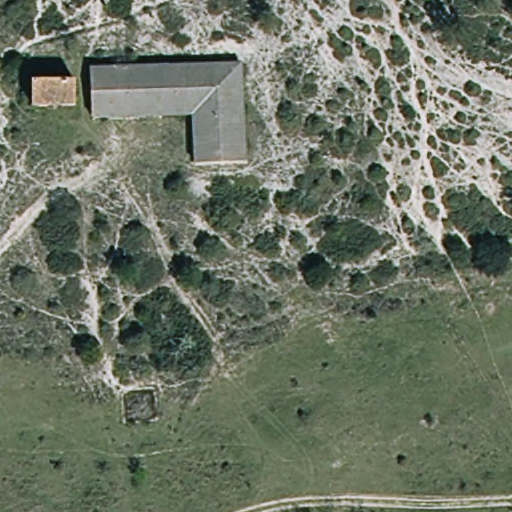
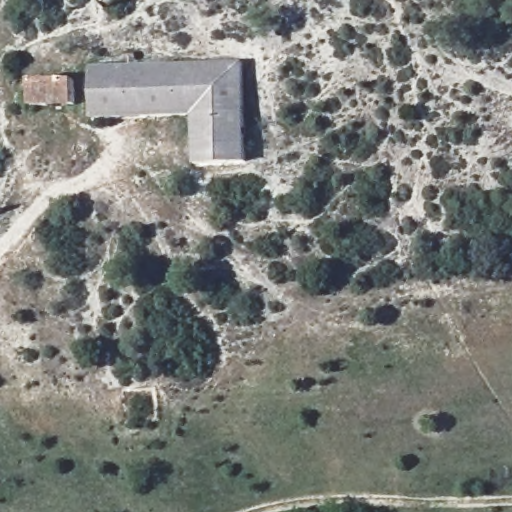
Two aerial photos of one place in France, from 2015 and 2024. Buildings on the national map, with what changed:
unchanged [(87,64),(242,59),(245,168),(190,170),(189,116),(92,120),(87,64)]
unchanged [(68,113),(29,107),(31,80),(70,85),(68,113)]

